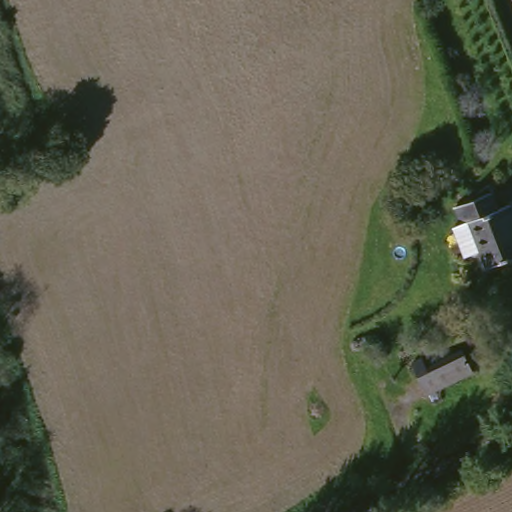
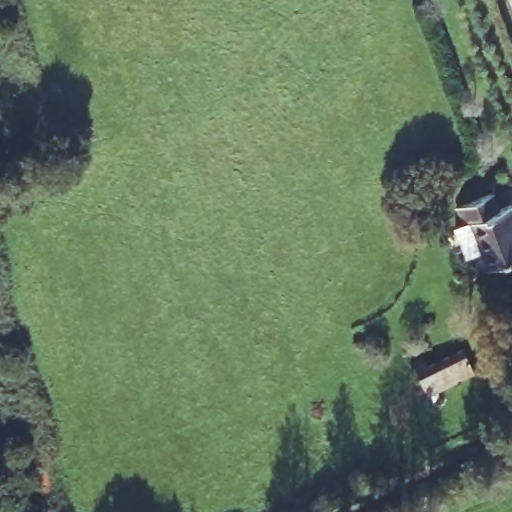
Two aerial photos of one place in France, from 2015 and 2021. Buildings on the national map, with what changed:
unchanged [(461,216),(499,202),(505,217),(512,214),(512,260),(484,271),(480,262),(469,266),(458,235),(467,231),(461,216)]
unchanged [(467,350),(477,375),(422,402),(411,376),(467,350)]

